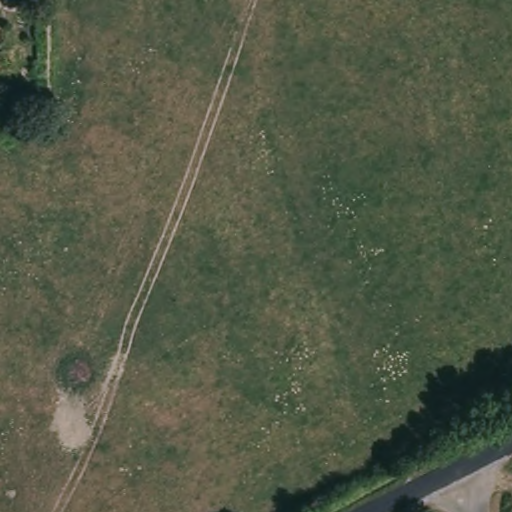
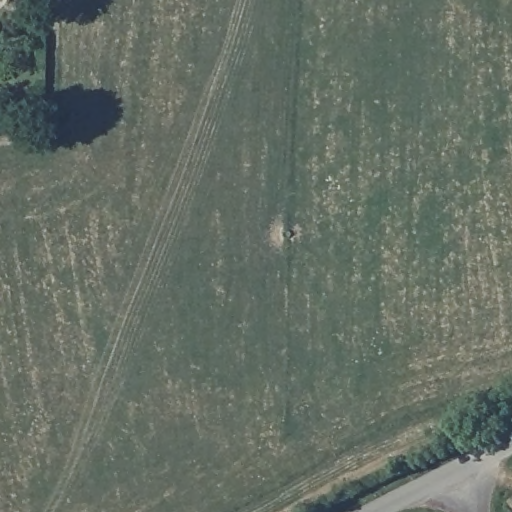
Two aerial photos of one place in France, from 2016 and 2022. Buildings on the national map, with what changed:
unchanged [(1,43),(0,43),(0,27),(1,27),(1,43)]

